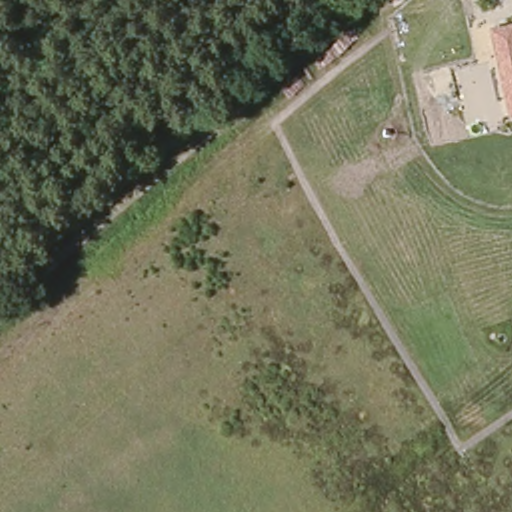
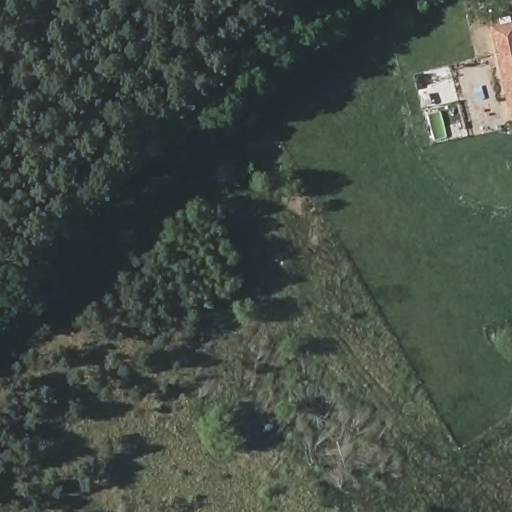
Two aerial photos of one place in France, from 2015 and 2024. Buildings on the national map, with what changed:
unchanged [(507,119),(488,30),(512,24),(512,118),(507,119)]

